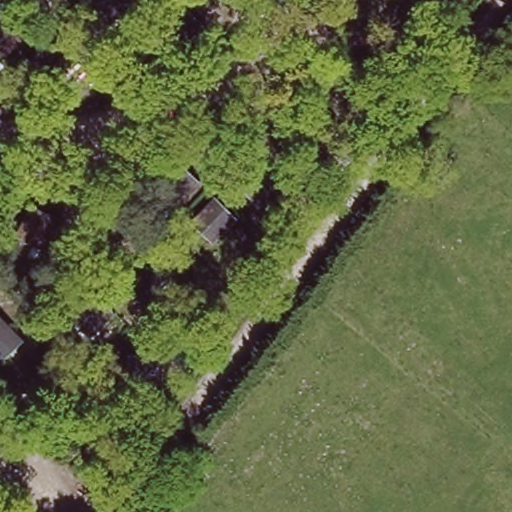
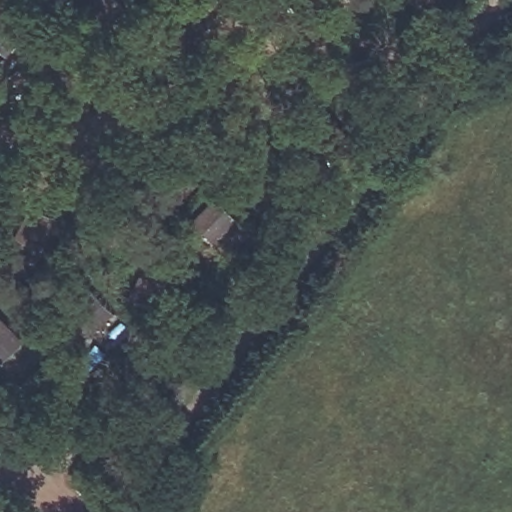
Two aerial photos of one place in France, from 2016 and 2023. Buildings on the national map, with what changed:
unchanged [(0,18),(7,10),(31,34),(9,56),(0,49),(0,18)]
unchanged [(178,205),(156,186),(177,162),(199,181),(178,205)]
unchanged [(191,222),(215,197),(237,218),(214,244),(191,222)]
unchanged [(7,225),(31,200),(52,220),(28,244),(7,225)]
unchanged [(70,316),(92,291),(114,312),(91,336),(70,316)]
unchanged [(0,315),(25,340),(1,361),(0,360),(0,315)]

